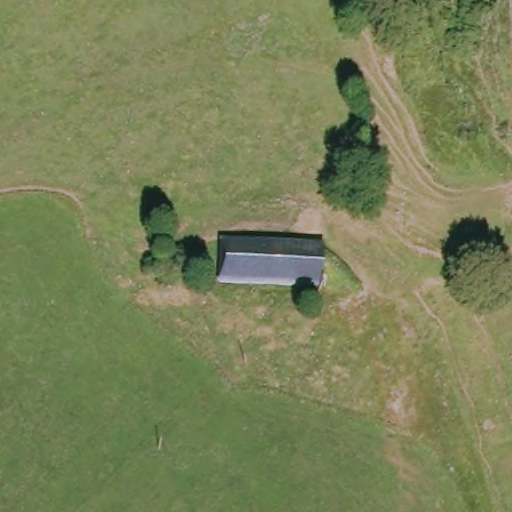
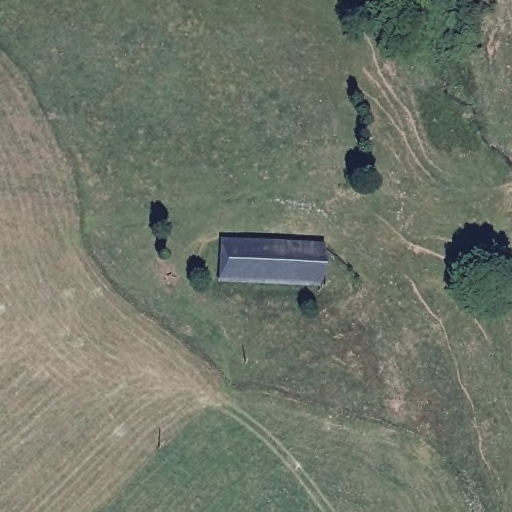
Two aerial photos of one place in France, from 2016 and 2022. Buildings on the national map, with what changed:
unchanged [(322,243),(321,285),(220,280),(220,241),(322,243)]

